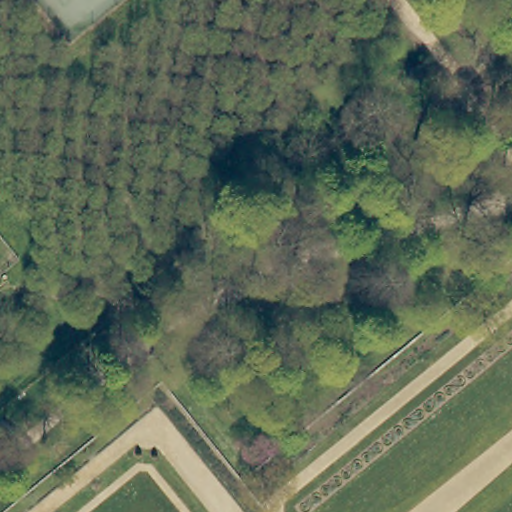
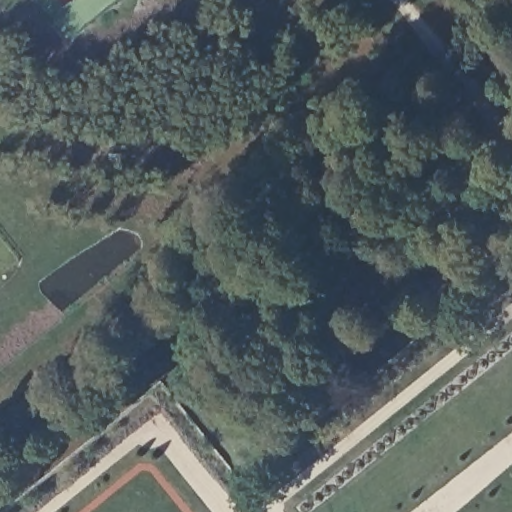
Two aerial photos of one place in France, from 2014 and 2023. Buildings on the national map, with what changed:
[]

